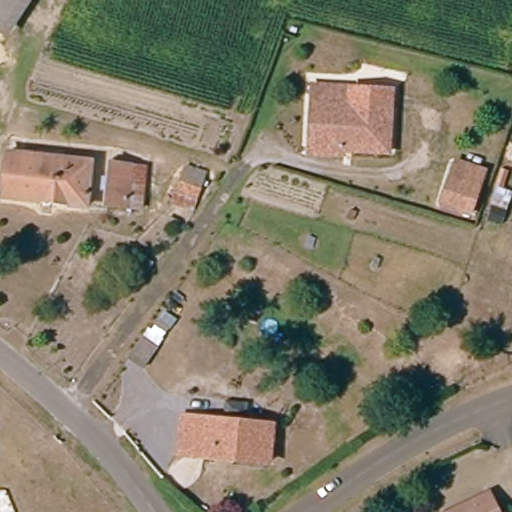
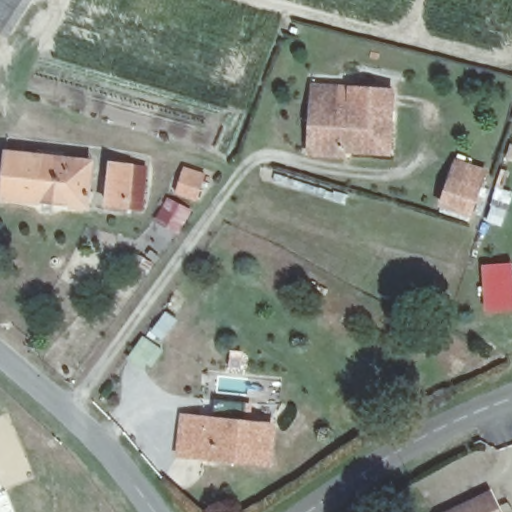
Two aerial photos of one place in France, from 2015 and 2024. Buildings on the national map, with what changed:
unchanged [(34,0),(10,37),(0,30),(0,0),(34,0)]
unchanged [(345,157),(312,155),(314,108),(315,88),(352,91),(351,108),(392,111),(391,156),(355,153),(346,152),(345,157)]
unchanged [(92,167),(89,212),(6,201),(10,157),(92,167)]
unchanged [(471,214),(443,205),(451,179),(456,164),(473,169),(485,172),(471,214)]
unchanged [(135,169),(137,169),(134,207),(114,205),(117,166),(135,169)]
unchanged [(210,175),(197,213),(178,206),(175,204),(176,199),(188,166),(210,175)]
unchanged [(507,225),(493,220),(497,207),(511,211),(507,225)]
new [(512,309),(485,310),(483,262),(512,260),(512,309)]
unchanged [(278,467),(196,456),(189,455),(192,417),(197,417),(281,429),(278,467)]
unchanged [(493,491),(501,512),(451,512),(493,491)]

